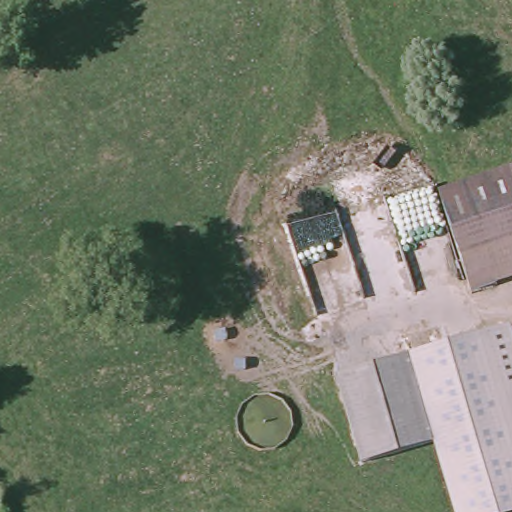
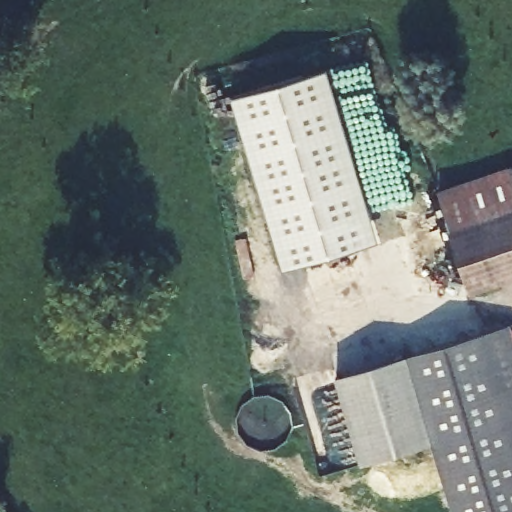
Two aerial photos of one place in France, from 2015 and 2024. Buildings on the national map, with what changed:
new [(232,96),(327,70),(378,241),(283,267),(232,96)]
unchanged [(468,286),(467,286),(435,196),(512,168),(512,273),(488,280),(468,286)]
unchanged [(512,325),(512,344),(506,327),(512,325)]
unchanged [(415,352),(506,327),(512,344),(512,512),(461,512),(440,439),(415,352)]
unchanged [(440,439),(366,461),(341,372),(415,352),(440,439)]

